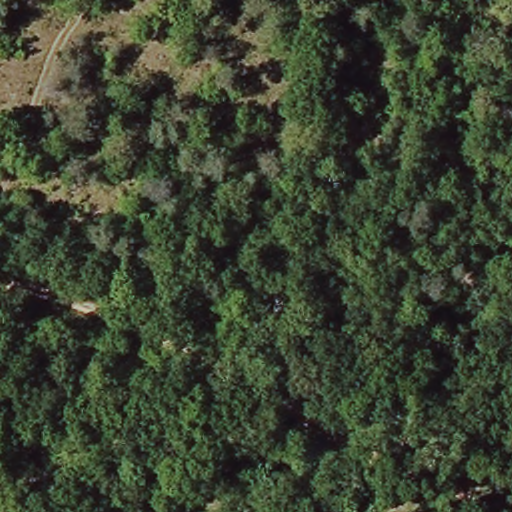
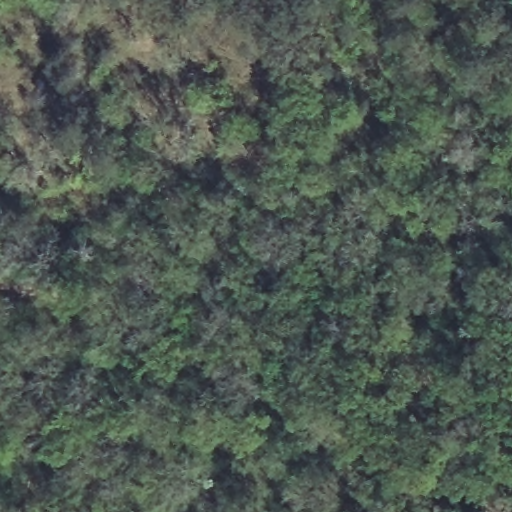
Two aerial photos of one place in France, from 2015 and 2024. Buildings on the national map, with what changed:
unchanged [(312,106),(320,102),(325,104),(328,111),(327,116),(319,120),(314,118),(311,111),(312,106)]

